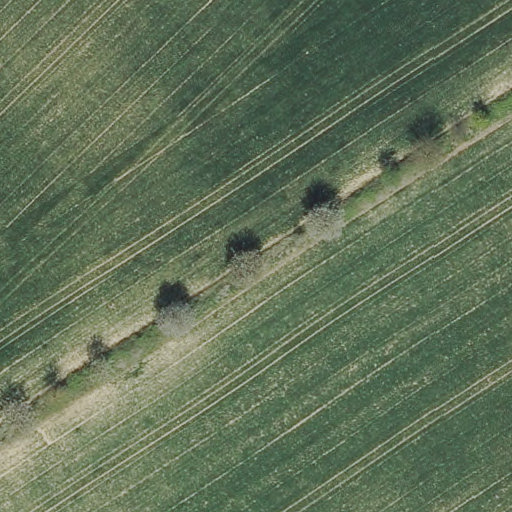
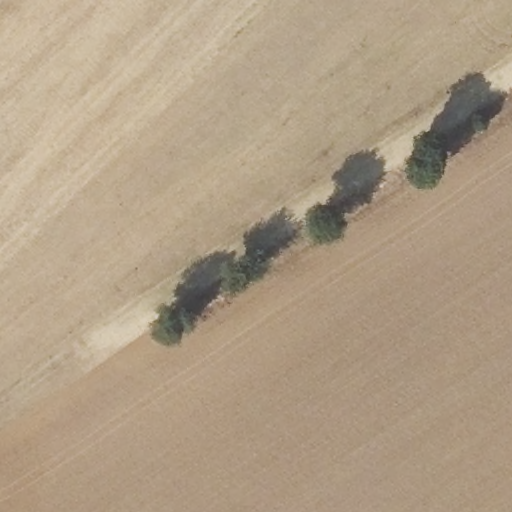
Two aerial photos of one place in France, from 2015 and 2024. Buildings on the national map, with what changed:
[]

